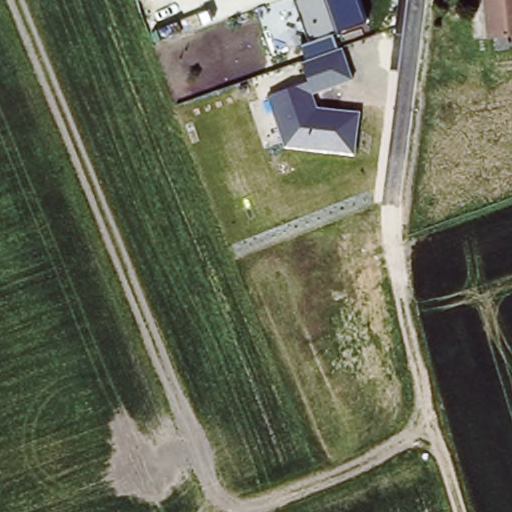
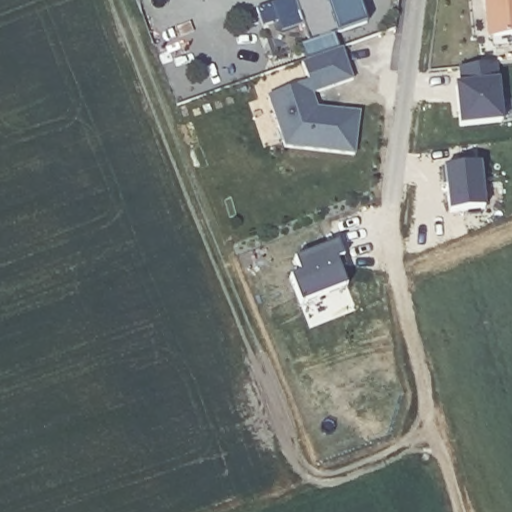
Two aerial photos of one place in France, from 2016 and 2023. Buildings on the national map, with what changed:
unchanged [(335,35),(352,79),(313,92),(320,107),(364,112),(360,155),(285,146),(267,96),(310,77),(302,41),(309,40),(295,0),(359,0),(368,22),(335,35)]
unchanged [(482,0),(512,0),(512,39),(492,41),(486,42),(484,14),(482,0)]
new [(504,121),(462,126),(457,85),(462,85),(460,66),(497,62),(504,121)]
new [(481,163),(486,207),(451,211),(448,184),(445,185),(443,167),(481,163)]
new [(297,260),(340,242),(346,257),(349,263),(342,267),(350,286),(304,304),(293,277),(302,273),(297,260)]

